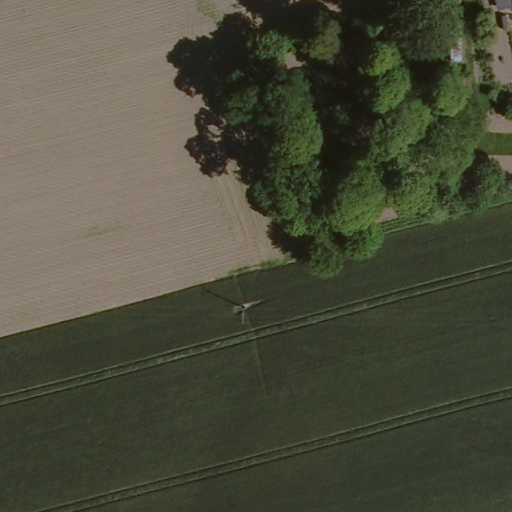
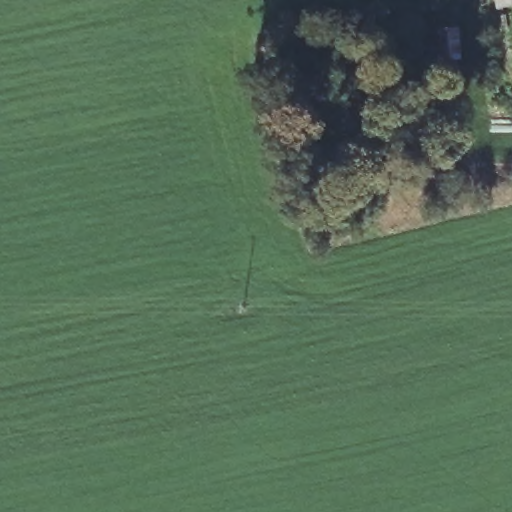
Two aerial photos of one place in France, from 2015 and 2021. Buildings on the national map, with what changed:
unchanged [(512,0),(512,1),(504,3),(503,0),(512,0)]
unchanged [(467,64),(451,68),(450,64),(449,58),(443,53),(442,28),(467,23),(467,54),(467,64)]

